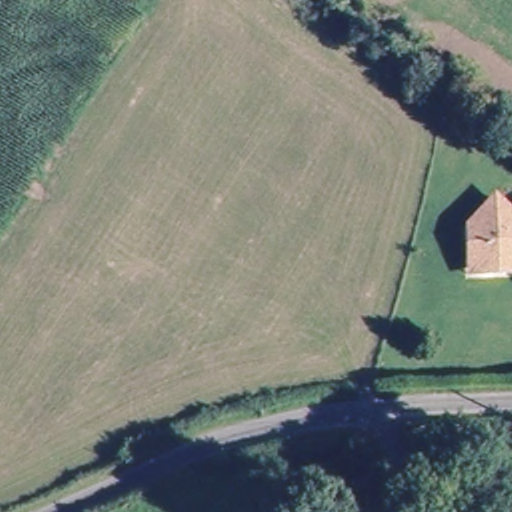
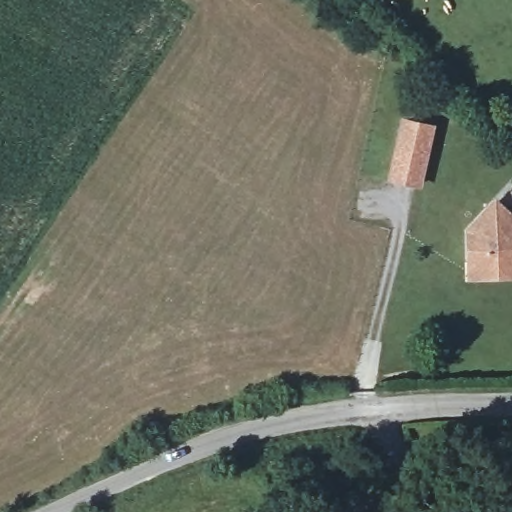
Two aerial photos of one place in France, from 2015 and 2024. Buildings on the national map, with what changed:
new [(399,117),(433,125),(419,190),(385,181),(399,117)]
unchanged [(467,222),(494,192),(512,209),(512,266),(485,267),(470,268),(469,254),(467,222)]

